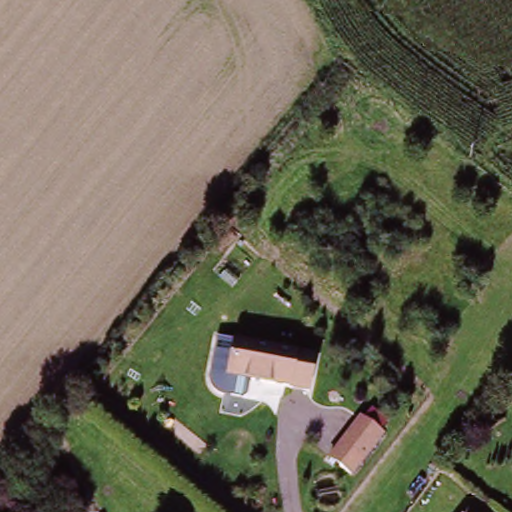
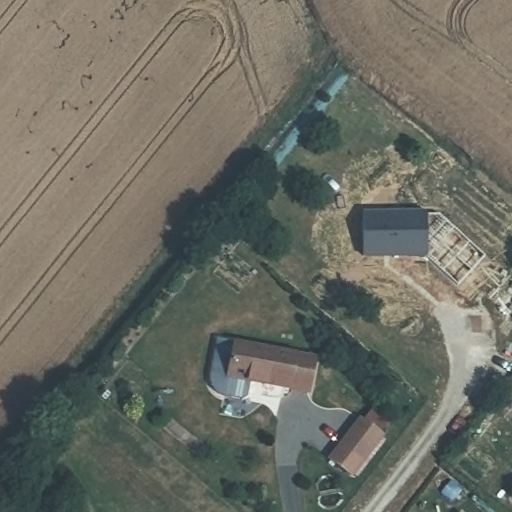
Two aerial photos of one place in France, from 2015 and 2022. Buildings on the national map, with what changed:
new [(426,211),(427,258),(362,259),(362,212),(426,211)]
unchanged [(309,363),(302,396),(220,376),(228,343),(309,363)]
unchanged [(512,368),(512,393),(500,383),(512,368)]
unchanged [(391,436),(360,476),(337,460),(369,420),(391,436)]

